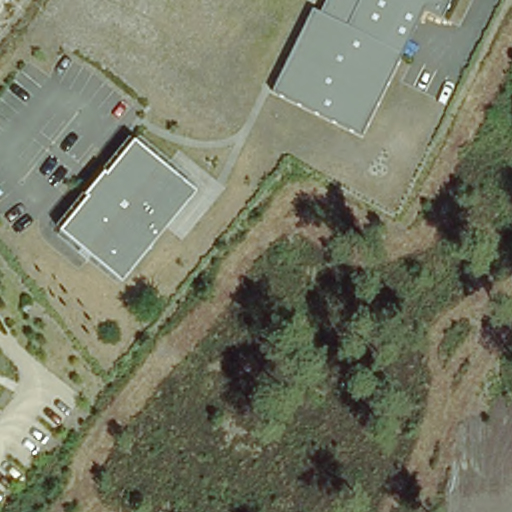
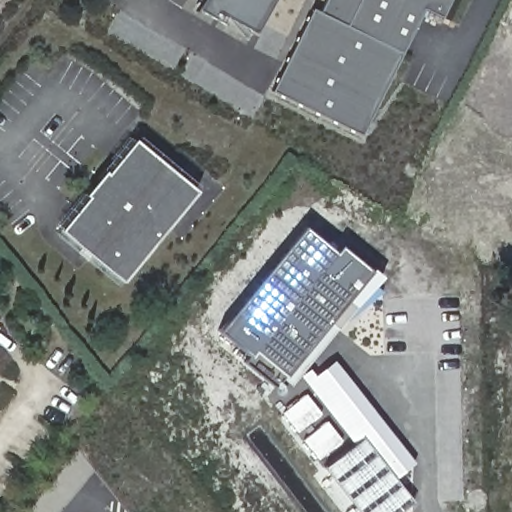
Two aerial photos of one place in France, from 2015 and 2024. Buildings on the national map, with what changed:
new [(273,0),(254,32),(217,14),(213,21),(190,14),(199,0),(273,0)]
unchanged [(320,13),(327,0),(454,0),(445,17),(427,10),(365,136),(272,91),(311,9),(320,13)]
unchanged [(61,232),(90,198),(86,195),(105,173),(108,176),(136,144),(198,196),(122,285),(61,232)]
new [(303,226),(333,251),(339,246),(369,270),(283,376),(281,373),(272,386),(243,362),(247,355),(217,331),(303,226)]
new [(309,368),(314,375),(333,360),(414,462),(395,478),(412,501),(398,512),(358,512),(322,466),(352,445),(299,375),(309,368)]
new [(297,432),(282,412),(306,394),(321,414),(297,432)]
new [(326,421),(343,440),(320,460),(303,441),(326,421)]

